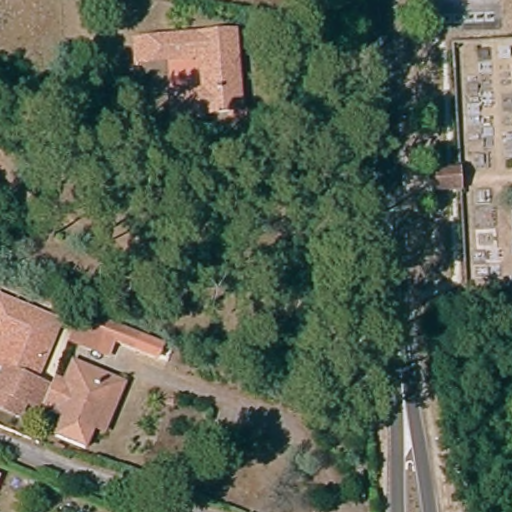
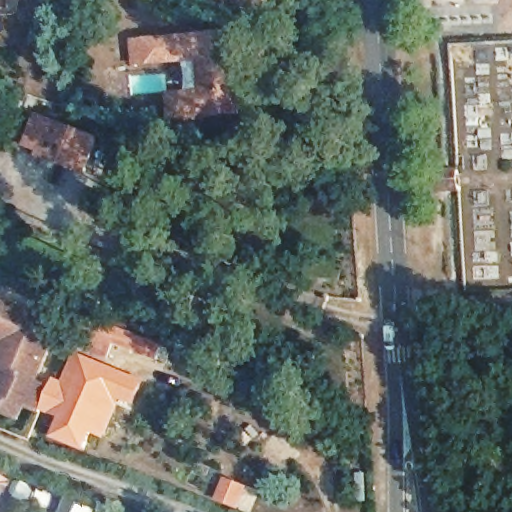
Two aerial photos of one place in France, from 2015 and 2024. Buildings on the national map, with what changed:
new [(156,0),(126,2),(126,0),(156,0)]
unchanged [(174,121),(172,100),(204,97),(201,65),(136,69),(134,46),(205,42),(229,40),(230,51),(235,116),(174,121)]
new [(36,117),(94,141),(82,171),(39,154),(41,149),(26,143),(36,117)]
unchanged [(16,416),(0,410),(0,383),(6,368),(0,365),(0,337),(1,334),(0,334),(0,298),(25,308),(60,322),(37,380),(54,386),(46,407),(44,411),(27,404),(21,418),(16,416)]
unchanged [(76,349),(62,344),(72,316),(86,321),(130,338),(156,347),(151,361),(107,345),(102,359),(76,349)]
unchanged [(75,361),(89,366),(127,380),(108,431),(97,427),(90,447),(59,436),(67,415),(46,407),(54,386),(57,378),(67,382),(75,361)]

